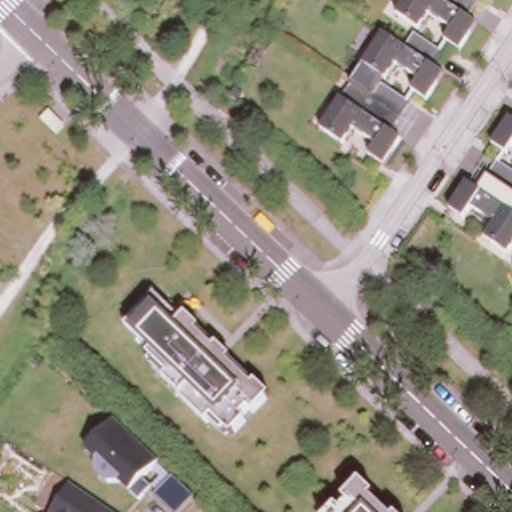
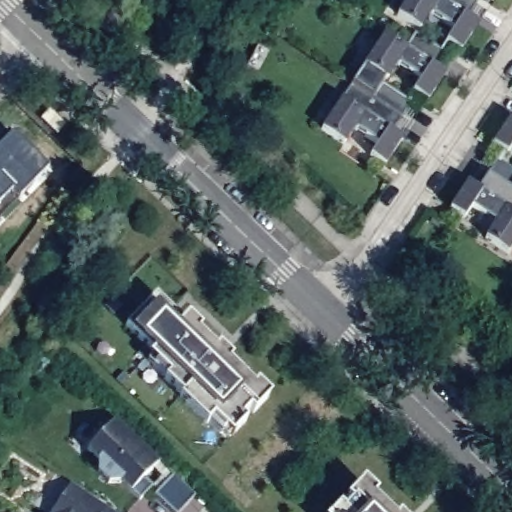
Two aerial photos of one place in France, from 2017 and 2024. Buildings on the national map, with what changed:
unchanged [(467,16),(481,24),(462,49),(450,42),(459,26),(430,11),(420,27),(396,14),(406,0),(478,0),(480,1),(467,16)]
unchanged [(445,50),(433,65),(447,73),(430,99),(417,91),(425,77),(397,61),(387,75),(366,64),(386,35),(407,47),(417,32),(445,50)]
unchanged [(412,101),(391,130),(405,137),(385,164),(372,154),(382,142),(356,126),(345,140),(320,126),(355,85),(372,99),(383,82),(412,101)]
unchanged [(507,152),(492,145),(510,117),(512,118),(512,144),(507,152)]
new [(47,170),(17,199),(0,217),(0,147),(13,135),(47,170)]
unchanged [(512,166),(512,244),(510,247),(487,235),(499,220),(472,204),(462,215),(449,205),(467,179),(481,187),(498,159),(512,166)]
unchanged [(159,293),(186,320),(191,315),(205,327),(203,328),(220,345),(222,344),(235,357),(235,358),(260,382),(260,381),(274,395),(257,411),(253,407),(246,415),(250,420),(236,435),(229,428),(225,431),(212,420),(210,421),(183,395),(185,393),(155,365),(158,361),(152,355),(156,350),(129,325),(159,293)]
unchanged [(157,461),(140,479),(148,487),(138,497),(122,483),(110,485),(96,475),(95,459),(85,450),(112,420),(157,461)]
unchanged [(347,502),(350,506),(358,498),(354,495),(370,477),(385,490),(383,491),(405,512),(337,512),(347,502)]
unchanged [(172,478),(193,496),(175,512),(155,495),(172,478)]
unchanged [(70,485),(110,512),(51,512),(70,485)]
unchanged [(406,511),(407,512),(405,512),(406,511)]

